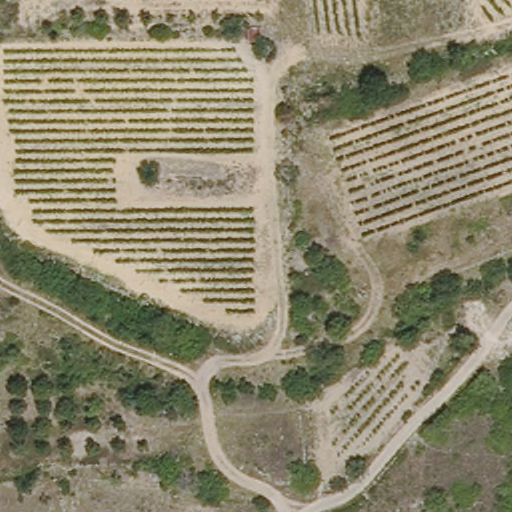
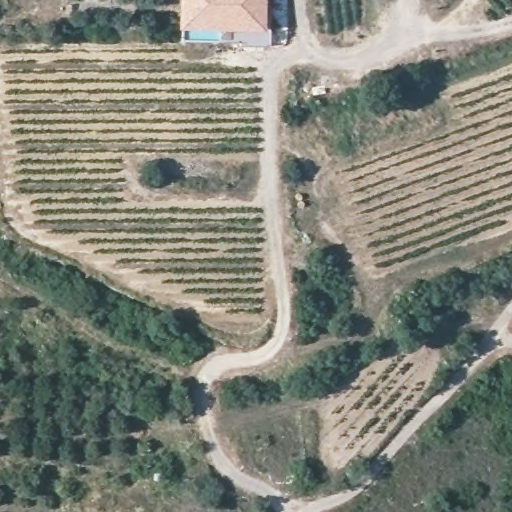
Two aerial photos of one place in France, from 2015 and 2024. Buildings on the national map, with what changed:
new [(241,45),(241,42),(220,41),(220,31),(180,29),(181,0),(271,0),(271,47),(241,45)]

